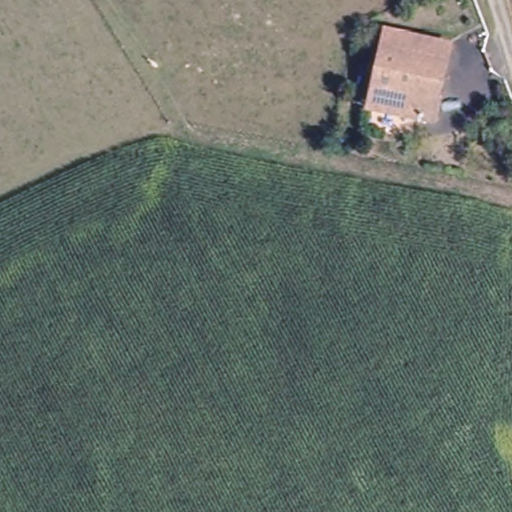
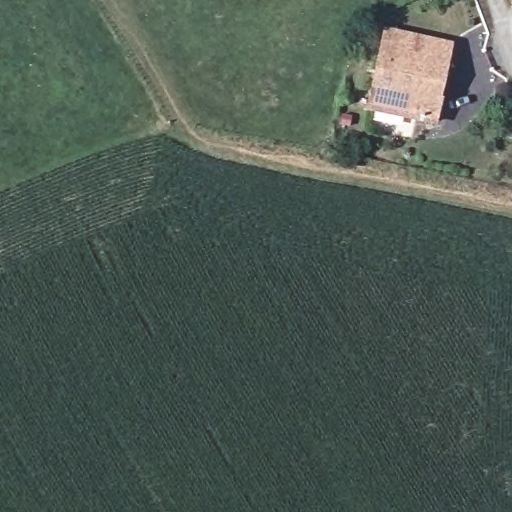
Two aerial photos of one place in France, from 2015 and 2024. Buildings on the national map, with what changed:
unchanged [(448,39),(429,116),(363,101),(386,25),(448,39)]

